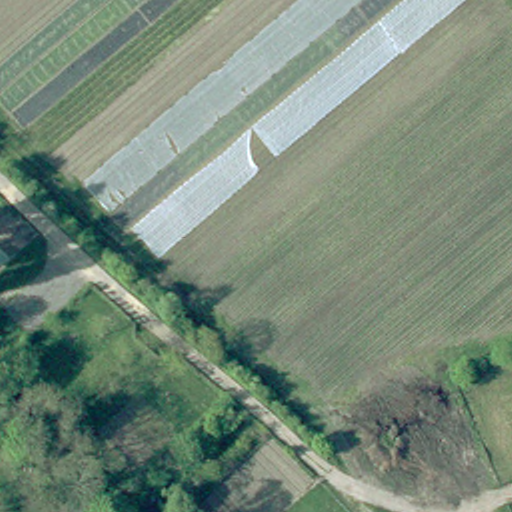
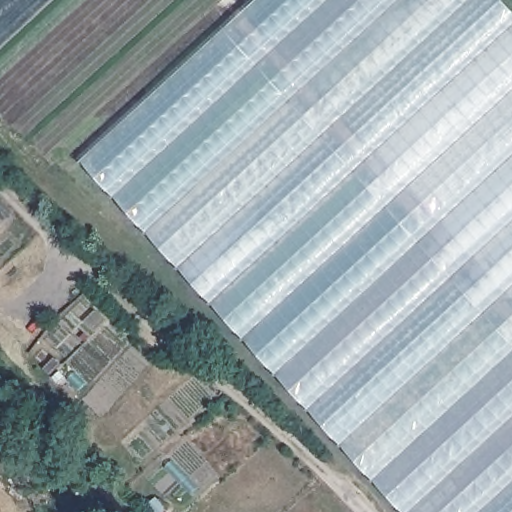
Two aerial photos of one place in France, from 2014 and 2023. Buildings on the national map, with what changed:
new [(404,0),(505,0),(512,7),(512,512),(403,512),(147,233),(404,0)]

